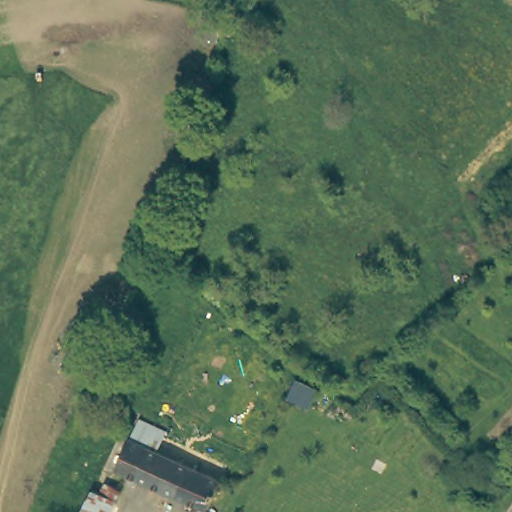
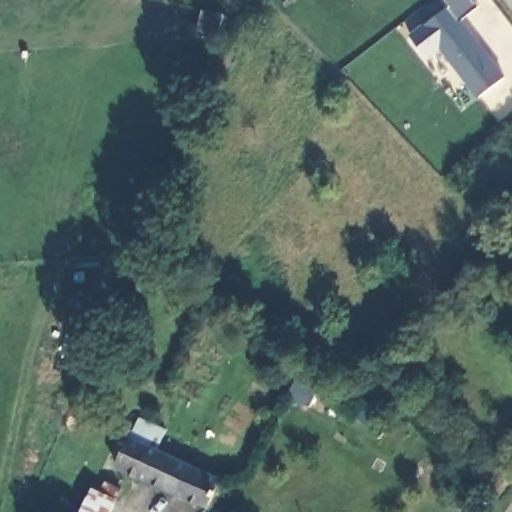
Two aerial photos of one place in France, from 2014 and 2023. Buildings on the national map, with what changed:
new [(463,19),(507,76),(479,98),(441,50),(428,59),(411,36),(423,26),(449,6),(444,0),(473,0),(479,6),(463,19)]
unchanged [(115,467),(131,435),(139,418),(165,430),(155,449),(221,480),(208,508),(115,467)]
unchanged [(105,482),(121,489),(110,512),(91,512),(105,482)]

